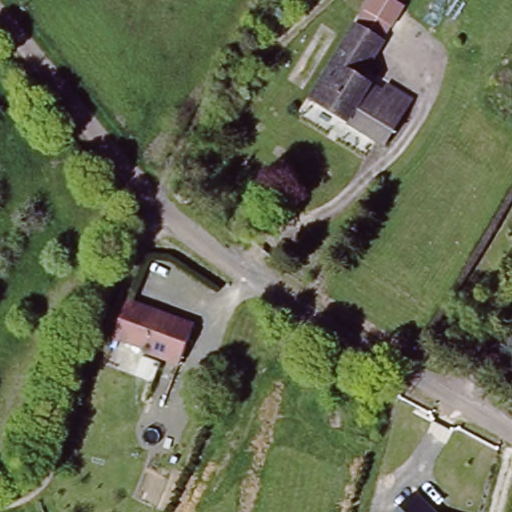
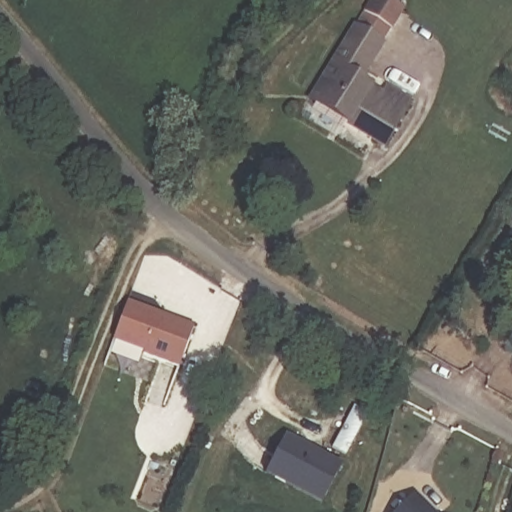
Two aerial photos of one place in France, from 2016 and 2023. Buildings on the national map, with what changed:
unchanged [(357,21),(382,36),(360,76),(382,89),(385,84),(410,100),(384,144),(310,96),(357,21)]
unchanged [(24,88),(40,105),(32,112),(15,94),(24,88)]
unchanged [(172,367),(107,341),(122,301),(189,328),(172,367)]
new [(321,503),(265,473),(286,432),(344,462),(321,503)]
unchanged [(417,491),(439,512),(394,512),(417,491)]

